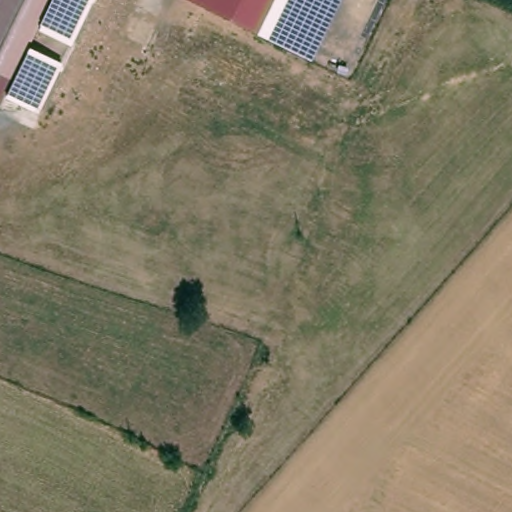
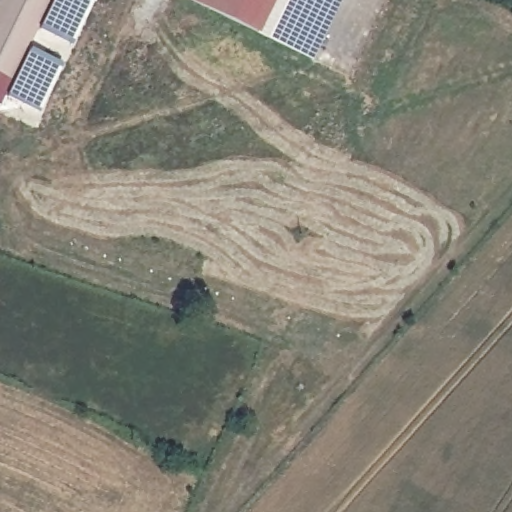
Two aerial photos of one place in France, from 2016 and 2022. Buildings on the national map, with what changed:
unchanged [(0,108),(0,3),(2,0),(56,0),(0,108)]
unchanged [(313,45),(307,57),(195,0),(337,0),(313,45)]

